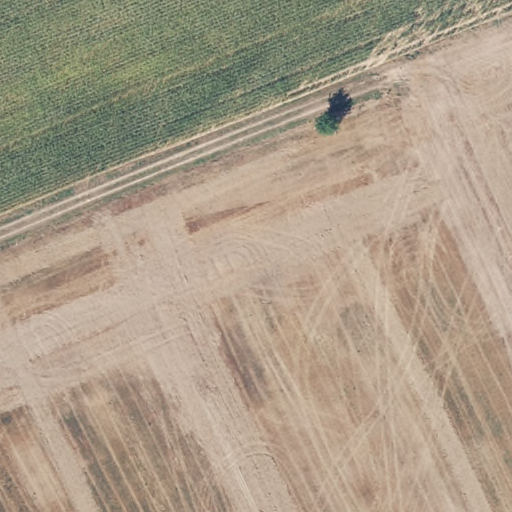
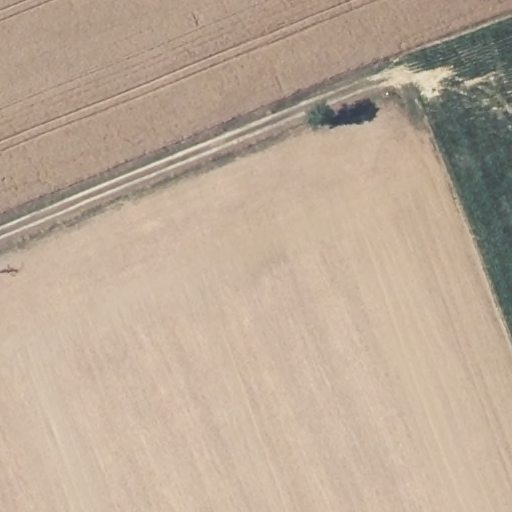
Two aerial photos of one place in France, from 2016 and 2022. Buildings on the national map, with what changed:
[]

